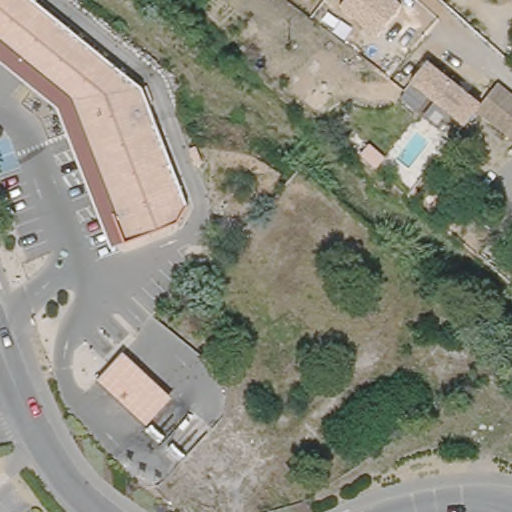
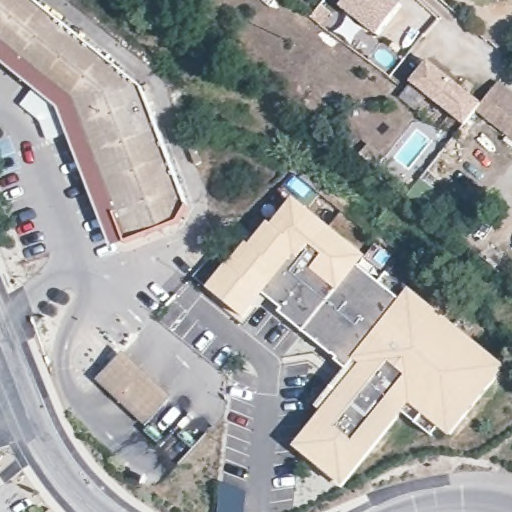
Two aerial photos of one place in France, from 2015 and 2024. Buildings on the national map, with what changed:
unchanged [(0,59),(0,0),(40,0),(146,85),(193,200),(181,225),(112,246),(62,109),(0,59)]
unchanged [(379,36),(342,7),(345,1),(343,0),(397,0),(403,5),(379,36)]
unchanged [(476,111),(467,123),(412,82),(433,56),(485,99),(476,111)]
unchanged [(476,111),(485,99),(498,82),(512,93),(512,139),(476,111)]
demolished [(298,169),(373,232),(392,287),(366,295),(350,243),(286,184),(298,169)]
new [(356,361),(348,371),(337,362),(339,360),(281,313),(283,310),(265,294),(245,320),(208,290),(227,266),(229,267),(247,244),(251,247),(269,224),(273,227),(296,200),(367,259),(359,268),(403,302),(412,290),(509,370),(451,438),(412,406),(345,488),(294,449),(361,366),(356,361)]
demolished [(314,245),(314,246),(317,251),(291,279),(279,270),(256,293),(234,273),(285,223),(314,245)]
unchanged [(127,351),(173,394),(148,424),(99,379),(127,351)]
new [(214,496),(244,500),(243,512),(212,512),(214,496)]

